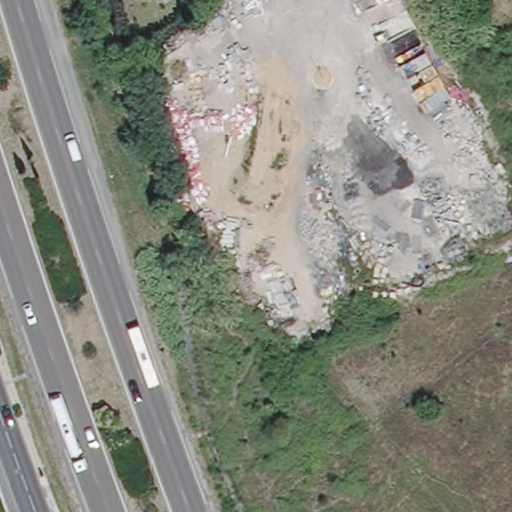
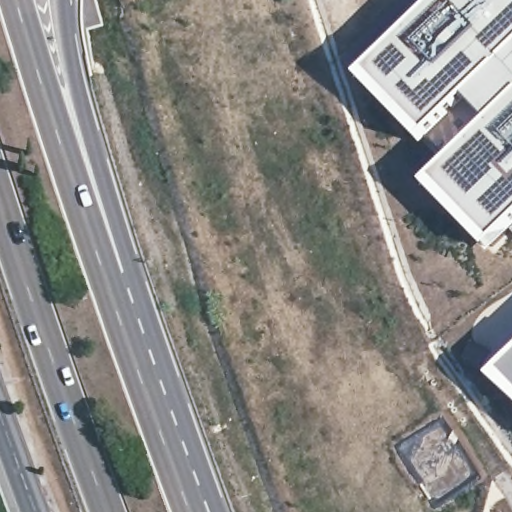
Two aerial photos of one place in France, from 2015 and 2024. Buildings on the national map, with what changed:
new [(490,253),(425,190),(492,124),(468,100),(423,146),(360,81),(444,0),(512,0),(512,231),(490,253)]
new [(512,360),(512,402),(490,382),(512,360)]

